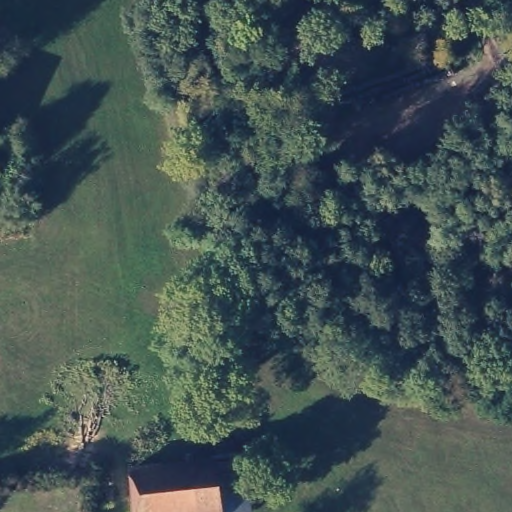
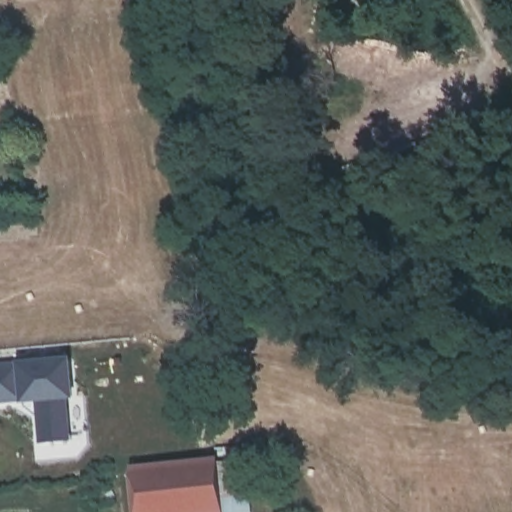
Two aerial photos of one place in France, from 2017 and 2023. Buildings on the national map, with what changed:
new [(39,444),(35,404),(20,405),(0,406),(0,364),(16,363),(70,358),(73,401),(67,401),(71,442),(39,444)]
unchanged [(223,512),(134,512),(128,465),(214,455),(223,512)]

